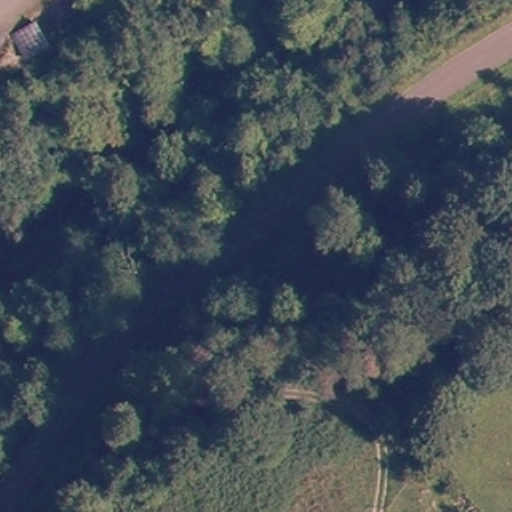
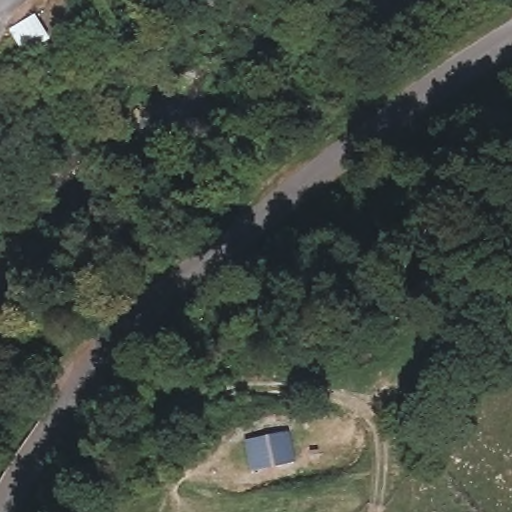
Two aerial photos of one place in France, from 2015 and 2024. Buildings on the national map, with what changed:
unchanged [(37,9),(40,14),(51,31),(27,46),(14,26),(37,9)]
new [(289,430),(296,459),(252,469),(245,439),(289,430)]

